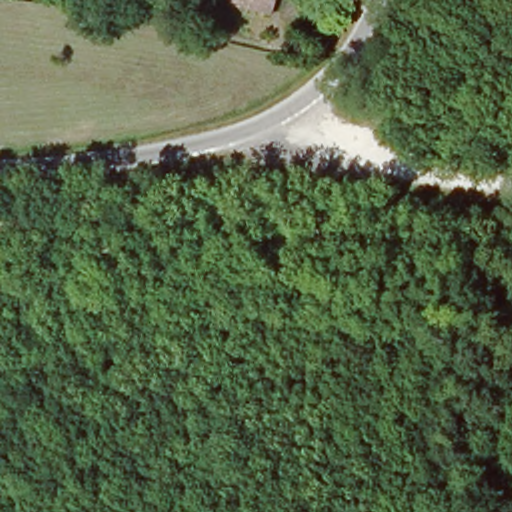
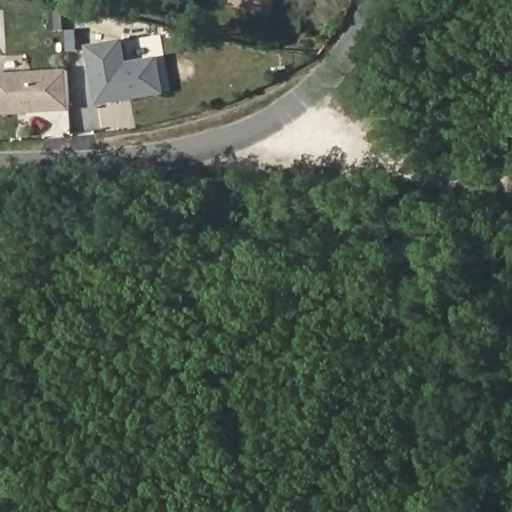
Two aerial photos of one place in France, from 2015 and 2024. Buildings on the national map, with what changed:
unchanged [(245,0),(277,0),(274,9),(245,0)]
new [(122,41),(125,65),(156,60),(161,95),(96,105),(87,47),(122,41)]
new [(67,114),(0,116),(0,76),(66,74),(67,114)]

